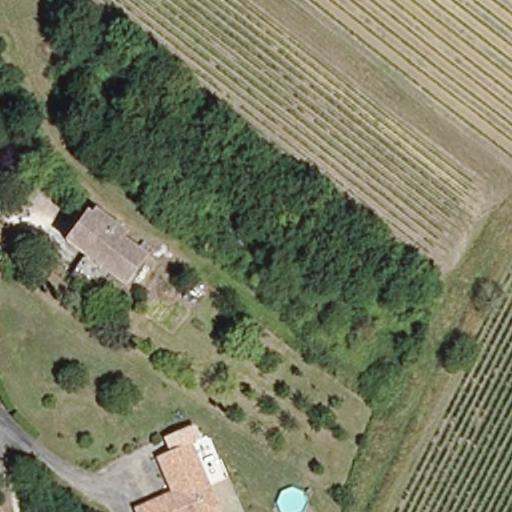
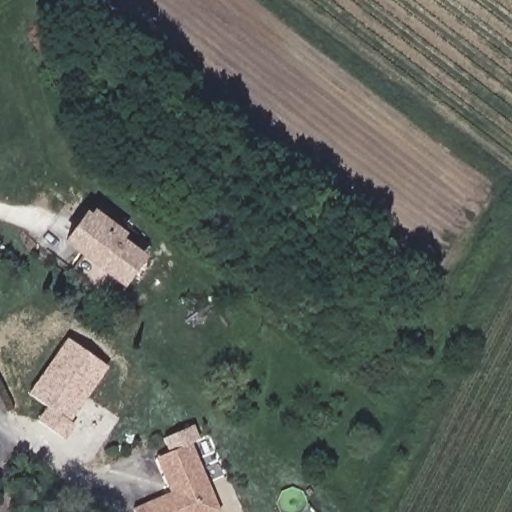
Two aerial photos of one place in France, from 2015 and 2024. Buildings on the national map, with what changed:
unchanged [(125,286),(70,244),(89,219),(95,223),(98,219),(121,236),(118,242),(145,262),(125,286)]
new [(66,337),(109,367),(69,421),(75,425),(65,440),(36,420),(45,406),(27,393),(66,337)]
unchanged [(221,512),(134,512),(133,511),(171,492),(157,457),(167,452),(190,442),(222,512),(221,512)]

